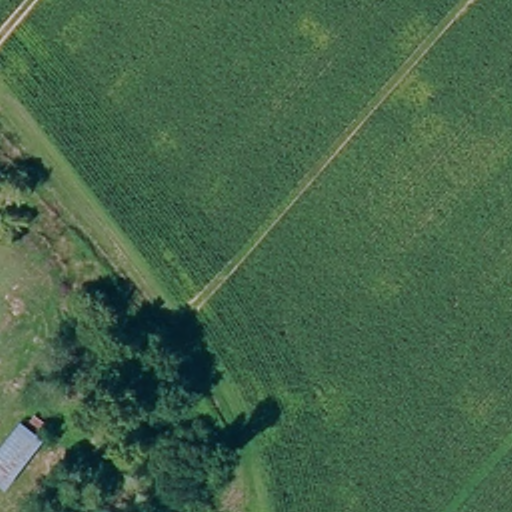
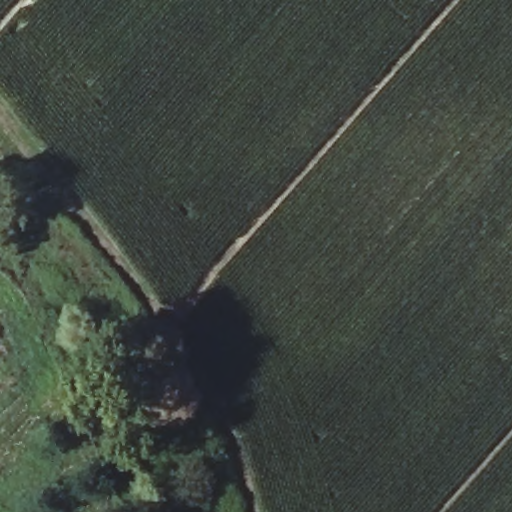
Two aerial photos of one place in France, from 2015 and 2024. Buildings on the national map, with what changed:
demolished [(0,452),(21,425),(42,441),(6,487),(0,482),(0,452)]

